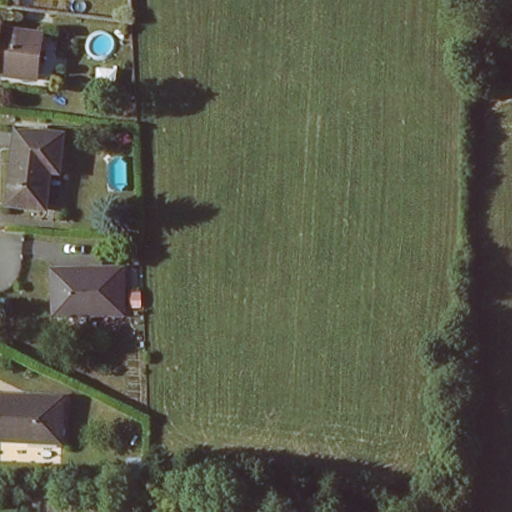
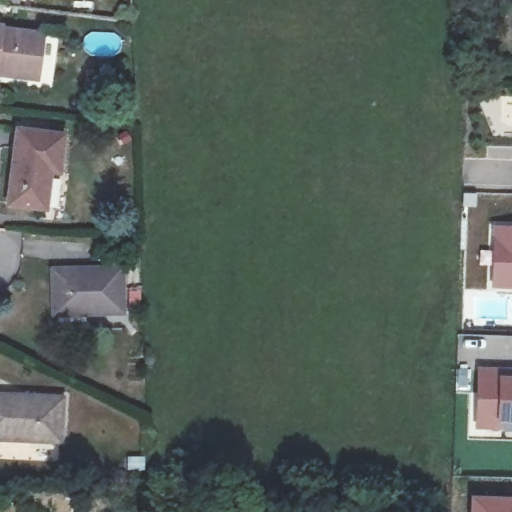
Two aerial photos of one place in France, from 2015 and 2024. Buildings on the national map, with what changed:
unchanged [(41,87),(0,78),(0,24),(51,33),(41,87)]
unchanged [(63,139),(58,178),(47,177),(44,212),(6,207),(15,132),(63,139)]
new [(512,227),(512,286),(494,285),(495,227),(512,227)]
unchanged [(72,268),(121,267),(123,311),(53,312),(52,267),(72,268)]
new [(497,365),(497,373),(512,374),(512,431),(478,431),(480,365),(497,365)]
unchanged [(51,440),(0,437),(0,392),(53,395),(51,440)]
new [(474,512),(475,495),(512,496),(512,512),(474,512)]

